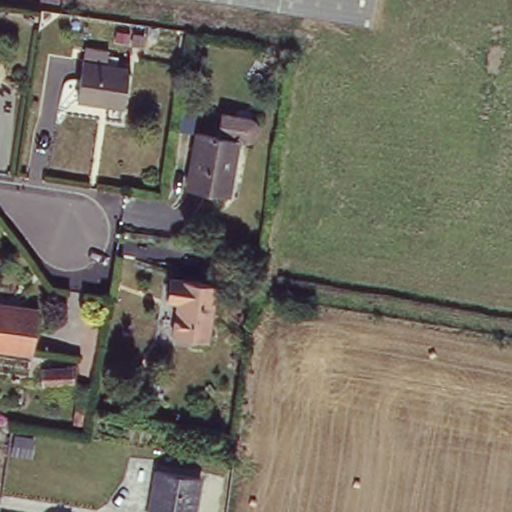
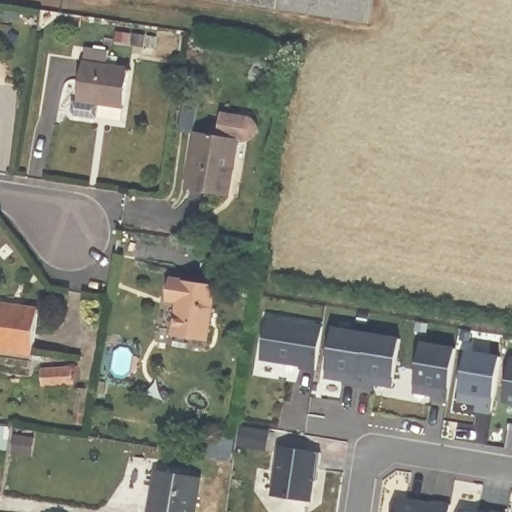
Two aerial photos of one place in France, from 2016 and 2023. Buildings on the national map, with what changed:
unchanged [(206,0),(376,0),(371,25),(206,0)]
unchanged [(77,100),(85,53),(109,56),(109,62),(120,64),(120,71),(126,72),(120,108),(77,100)]
unchanged [(185,184),(195,132),(236,140),(226,191),(185,184)]
unchanged [(164,298),(169,272),(217,281),(206,339),(170,332),(176,300),(164,298)]
unchanged [(0,302),(40,308),(34,353),(0,347),(0,302)]
new [(267,314),(322,323),(315,367),(299,365),(300,362),(260,356),(267,314)]
new [(359,382),(343,380),(343,376),(325,374),(333,325),(368,330),(359,382)]
new [(393,383),(376,380),(375,385),(359,382),(368,330),(401,336),(393,383)]
new [(448,400),(431,396),(432,392),(413,389),(421,340),(457,345),(448,400)]
new [(504,402),(511,358),(512,359),(512,403),(504,402)]
new [(73,367),(74,385),(42,386),(41,370),(73,367)]
unchanged [(21,446),(0,443),(0,422),(24,426),(21,446)]
new [(315,481),(316,470),(311,502),(272,496),(280,447),(322,453),(320,470),(317,481),(315,481)]
unchanged [(157,465),(197,472),(191,512),(150,512),(157,465)]
new [(450,512),(394,512),(396,498),(435,505),(435,502),(451,505),(450,512)]
new [(461,510),(476,512),(461,512),(461,510)]

